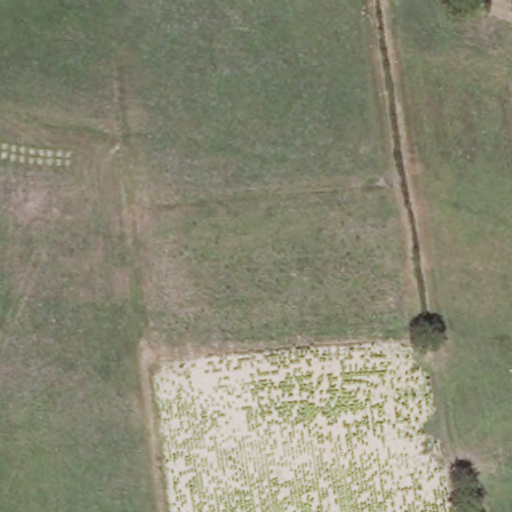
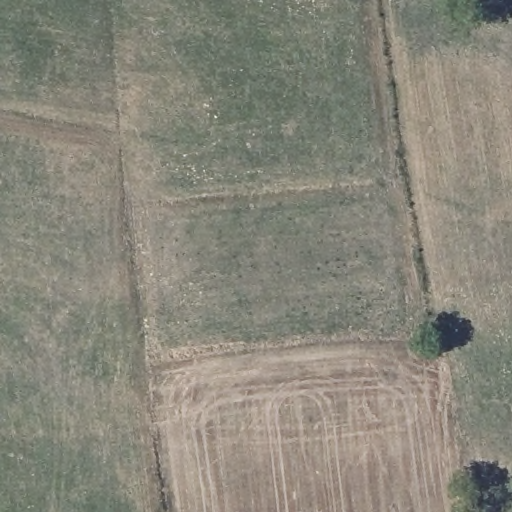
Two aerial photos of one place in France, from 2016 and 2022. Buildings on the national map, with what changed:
[]

